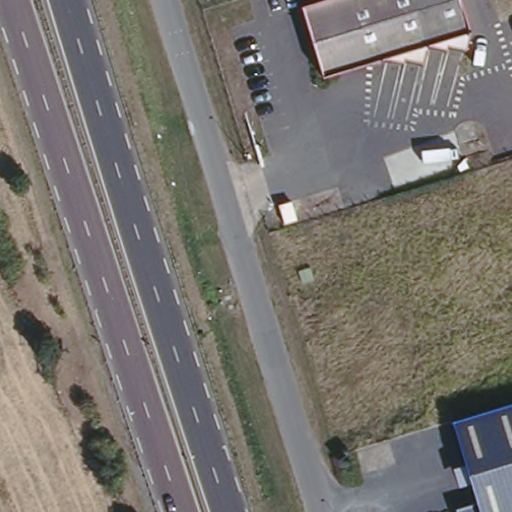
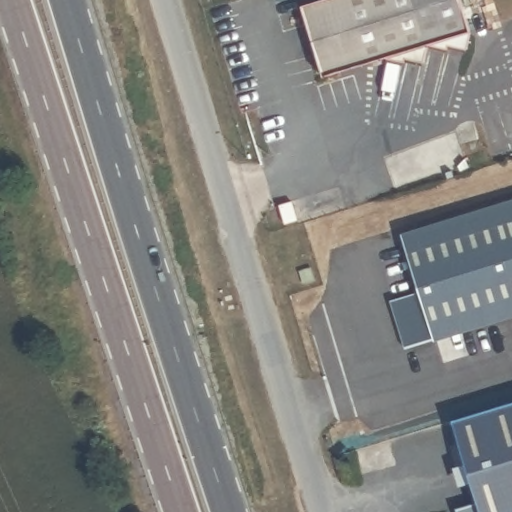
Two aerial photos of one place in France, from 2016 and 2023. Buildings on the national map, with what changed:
unchanged [(308,0),(412,0),(426,48),(324,80),(301,2),(308,0)]
unchanged [(412,0),(463,0),(472,33),(426,48),(412,0)]
new [(419,281),(401,228),(512,192),(512,305),(410,338),(393,292),(419,281)]
unchanged [(298,300),(289,274),(315,266),(323,292),(298,300)]
unchanged [(479,497),(455,418),(512,401),(512,512),(460,512),(458,505),(479,497)]

